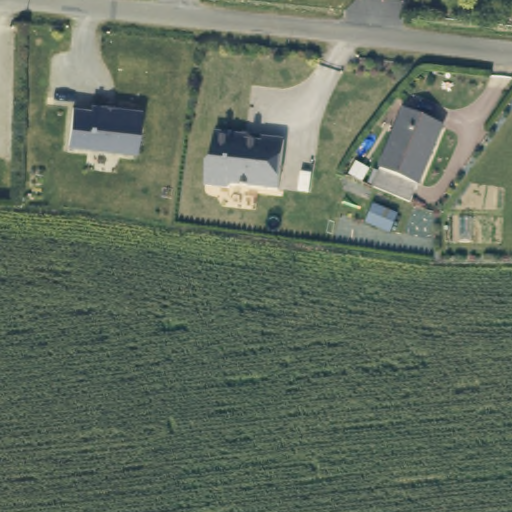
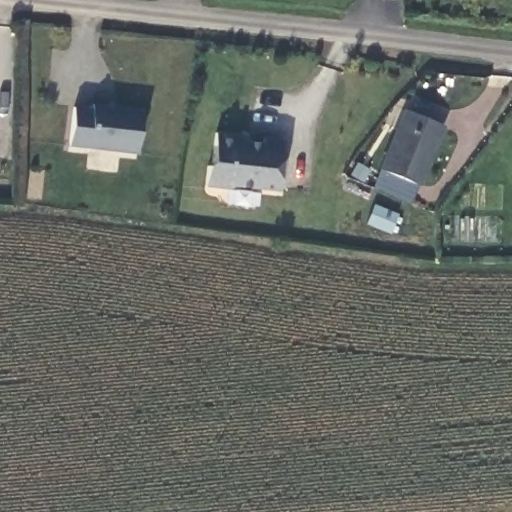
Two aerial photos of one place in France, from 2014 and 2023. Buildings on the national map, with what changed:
unchanged [(70,143),(75,105),(94,107),(95,102),(144,110),(138,152),(70,143)]
unchanged [(405,111),(440,127),(406,204),(371,188),(405,111)]
unchanged [(242,137),(245,142),(262,144),(263,139),(285,142),(279,192),(235,186),(230,190),(205,187),(208,167),(216,134),(242,137)]
unchanged [(396,215),(388,234),(365,225),(372,206),(396,215)]

